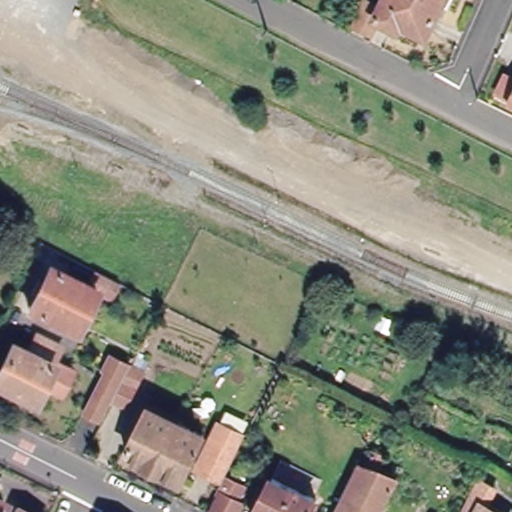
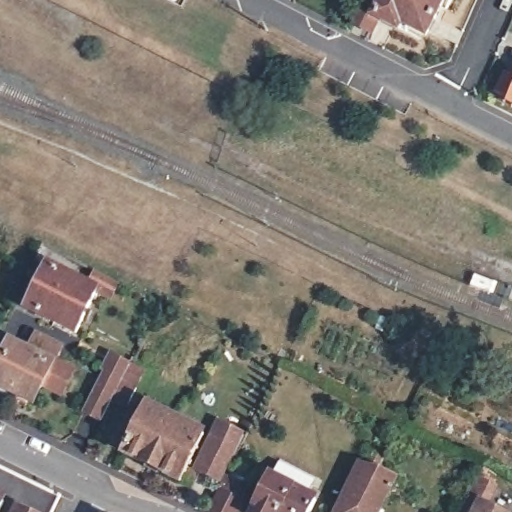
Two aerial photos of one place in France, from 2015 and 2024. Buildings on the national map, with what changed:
unchanged [(346,26),(358,1),(377,11),(383,0),(442,0),(437,10),(421,39),(419,37),(417,36),(413,35),(398,27),(396,33),(374,22),(367,36),(346,26)]
unchanged [(507,79),(512,81),(512,100),(500,94),(507,79)]
unchanged [(77,325),(73,322),(67,333),(50,325),(47,328),(42,326),(45,322),(22,310),(27,300),(22,297),(29,285),(33,287),(42,271),(78,290),(82,282),(87,272),(97,277),(111,285),(102,302),(87,295),(79,311),(82,312),(77,325)]
unchanged [(41,365),(60,375),(50,395),(31,385),(21,404),(17,402),(13,408),(7,406),(10,398),(0,393),(0,354),(7,341),(22,348),(32,330),(54,342),(41,365)]
unchanged [(101,373),(105,366),(109,360),(126,368),(139,375),(132,389),(122,409),(109,402),(98,422),(81,413),(101,373)]
unchanged [(175,421),(199,433),(175,479),(152,468),(150,477),(136,471),(142,463),(122,452),(131,432),(145,406),(175,421)]
unchanged [(216,422),(241,434),(237,442),(220,475),(240,485),(233,498),(237,501),(232,512),(204,512),(215,491),(213,489),(217,480),(192,466),(216,422)]
unchanged [(362,467),(377,474),(380,469),(368,463),(376,450),(387,455),(385,459),(389,462),(386,470),(396,476),(395,483),(387,497),(379,512),(339,512),(347,496),(362,467)]
unchanged [(316,497),(313,501),(317,503),(312,512),(256,512),(272,481),(298,493),(301,489),(316,497)]
unchanged [(497,493),(487,511),(490,512),(464,512),(479,483),(497,493)]
unchanged [(0,508),(0,503),(2,504),(0,508)]

